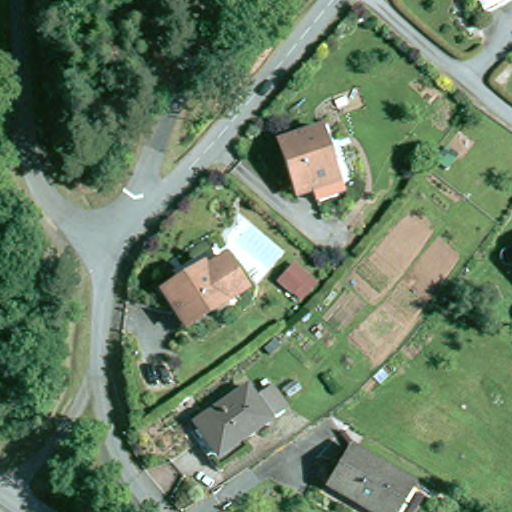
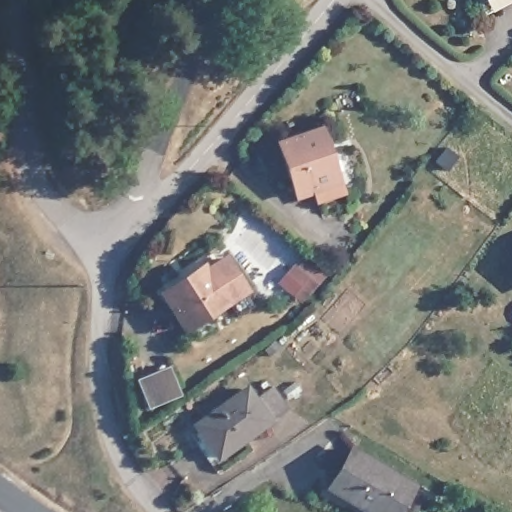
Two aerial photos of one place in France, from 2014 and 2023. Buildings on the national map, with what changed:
unchanged [(478,0),(512,0),(512,1),(486,14),(478,0)]
unchanged [(338,185),(317,192),(299,197),(283,144),(321,131),(326,147),(336,178),(338,185)]
unchanged [(206,266),(208,269),(226,259),(245,292),(184,329),(161,292),(178,282),(206,266)]
unchanged [(309,277),(294,295),(282,285),(298,266),(309,277)]
new [(181,393),(148,406),(137,377),(169,364),(181,393)]
unchanged [(216,470),(202,451),(206,447),(201,439),(205,436),(201,431),(253,395),(259,405),(278,392),(293,413),(275,426),(246,447),(225,462),(216,470)]
unchanged [(397,512),(371,512),(331,490),(354,451),(413,485),(397,512)]

